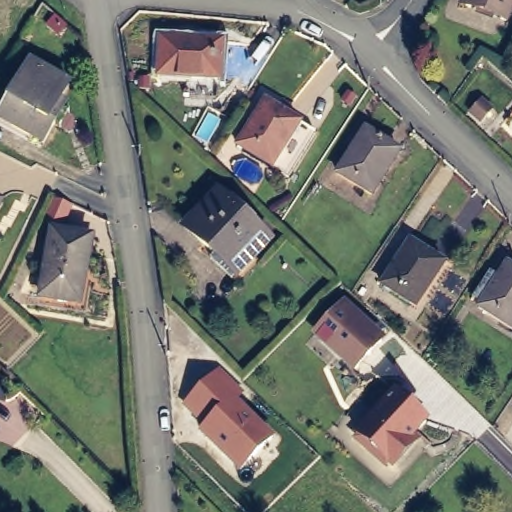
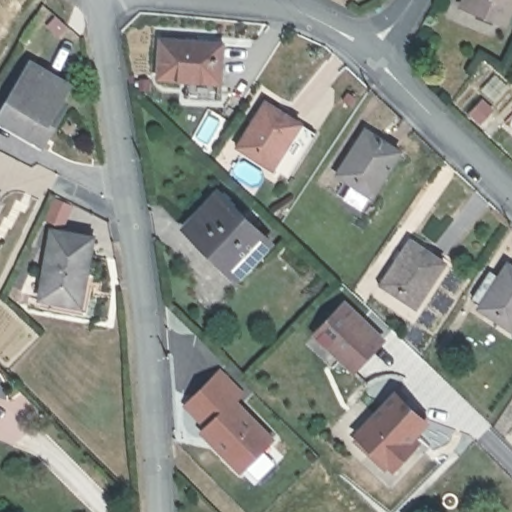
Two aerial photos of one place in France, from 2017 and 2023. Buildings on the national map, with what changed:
unchanged [(512,0),(512,21),(475,5),(471,4),(473,0),(512,0)]
unchanged [(38,11),(43,2),(66,23),(56,37),(32,20),(38,11)]
unchanged [(161,78),(164,38),(226,42),(223,83),(161,78)]
unchanged [(43,145),(0,121),(0,113),(30,62),(69,84),(58,103),(65,107),(53,127),(43,145)]
unchanged [(341,102),(346,95),(354,99),(349,107),(341,102)]
unchanged [(231,143),(260,96),(309,129),(283,174),(231,143)]
unchanged [(399,151),(370,195),(336,174),(365,129),(399,151)]
unchanged [(236,281),(211,256),(216,251),(186,223),(218,189),(267,236),(252,252),(258,258),(236,281)]
unchanged [(79,300),(40,294),(51,227),(90,233),(79,300)]
unchanged [(381,284),(409,241),(444,264),(415,308),(381,284)]
unchanged [(483,314),(486,309),(478,304),(494,276),(504,282),(512,268),(512,334),(483,314)]
unchanged [(343,309),(381,346),(355,373),(316,336),(343,309)]
unchanged [(239,473),(198,433),(203,428),(181,406),(219,371),(245,394),(238,401),(275,438),(239,473)]
unchanged [(412,449),(394,468),(360,435),(399,394),(429,422),(417,436),(421,440),(412,449)]

